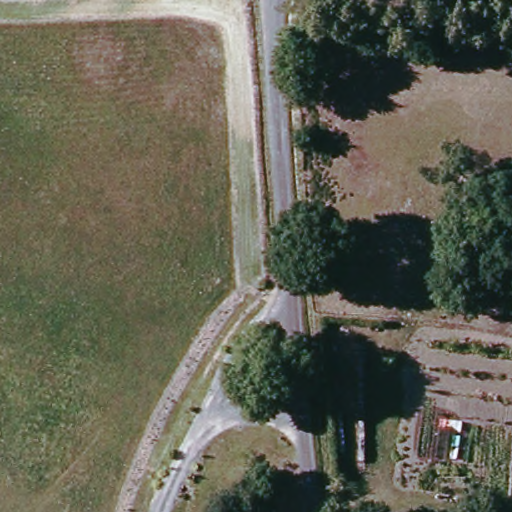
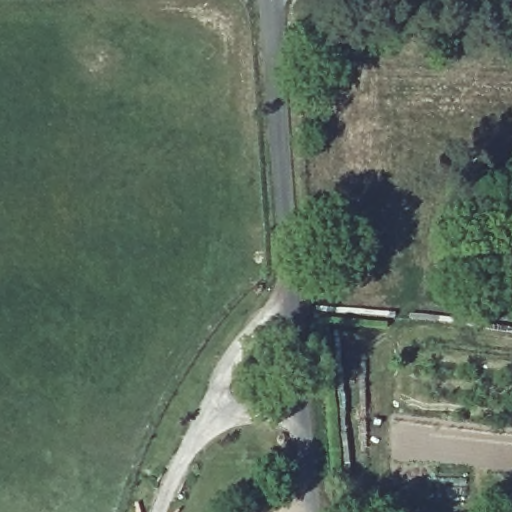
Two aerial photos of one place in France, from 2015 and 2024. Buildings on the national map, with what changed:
[]

